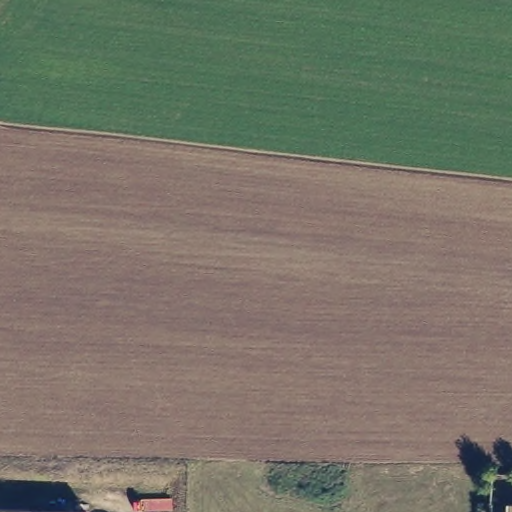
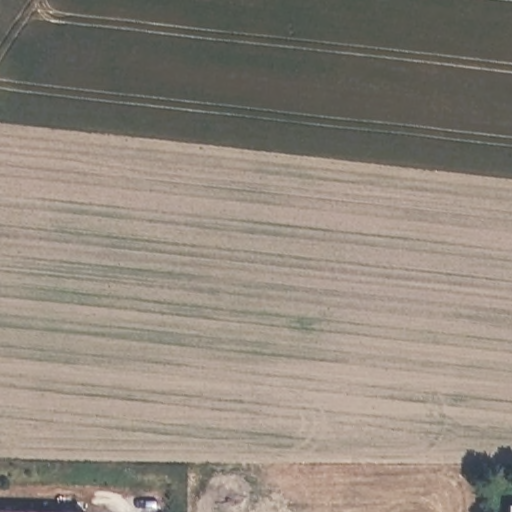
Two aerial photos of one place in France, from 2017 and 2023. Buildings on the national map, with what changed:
unchanged [(0,512),(0,511),(28,512),(0,512)]

